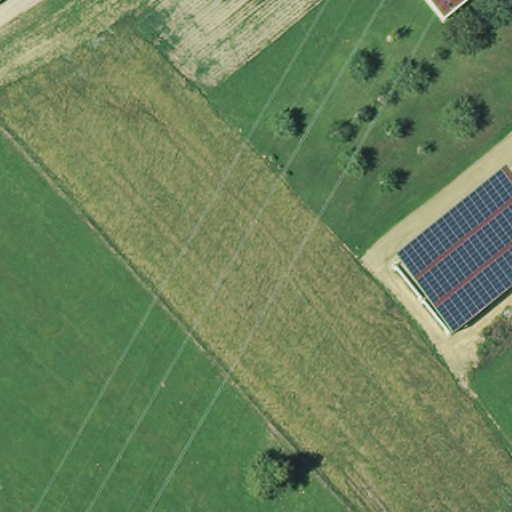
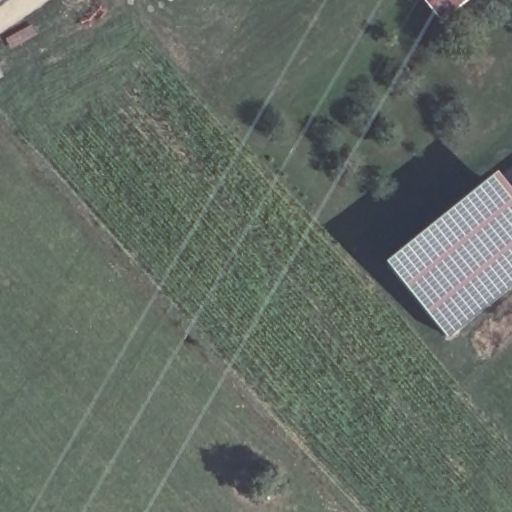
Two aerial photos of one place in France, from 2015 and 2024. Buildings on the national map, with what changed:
unchanged [(0,6),(0,0),(9,0),(0,6)]
unchanged [(442,21),(423,0),(468,0),(442,21)]
unchanged [(449,337),(384,260),(493,170),(512,194),(512,284),(449,337)]

